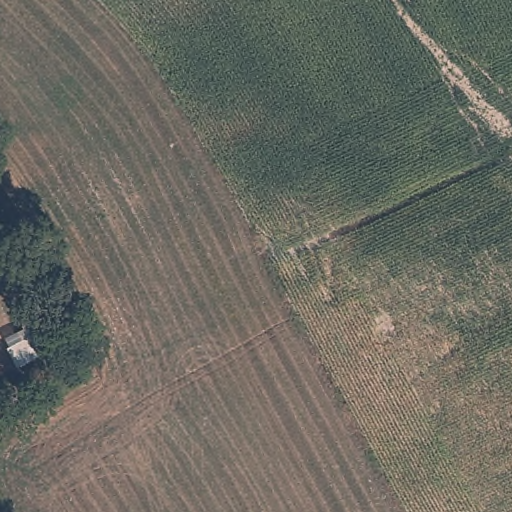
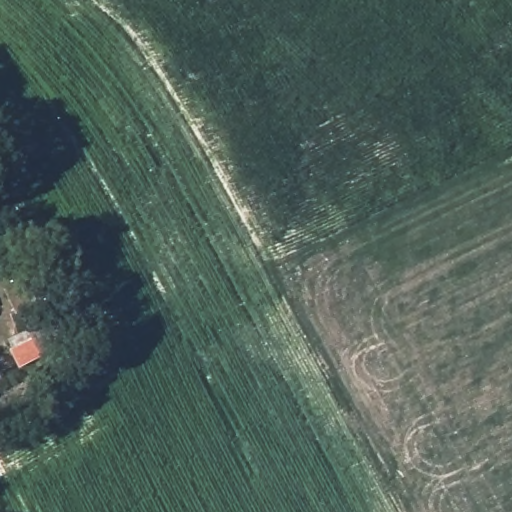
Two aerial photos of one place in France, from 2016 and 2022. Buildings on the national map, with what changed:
unchanged [(1,232),(10,255),(0,260),(0,232),(1,232)]
unchanged [(20,286),(26,300),(12,307),(6,292),(20,286)]
unchanged [(30,306),(34,315),(41,312),(46,323),(51,321),(64,347),(39,359),(15,313),(30,306)]

